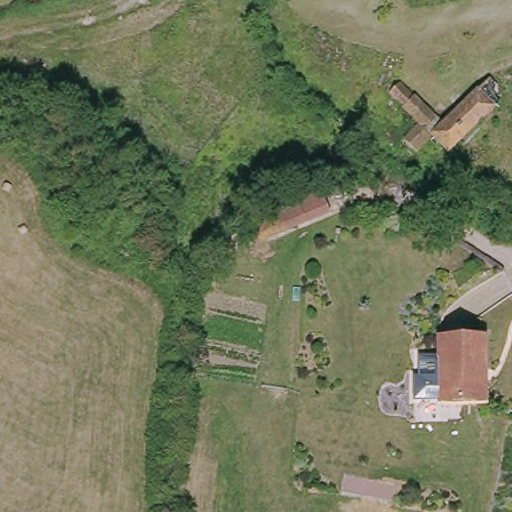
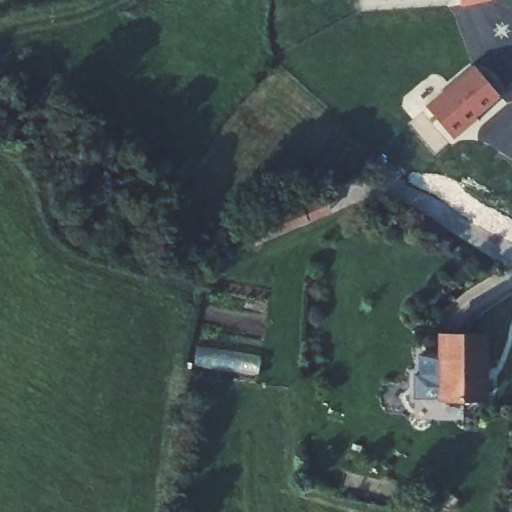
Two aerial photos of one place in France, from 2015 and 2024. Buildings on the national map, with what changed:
new [(460,9),(458,0),(491,0),(491,2),(460,9)]
new [(452,140),(425,107),(473,65),(501,99),(452,140)]
demolished [(411,100),(422,91),(447,119),(493,76),(512,94),(512,95),(455,147),(438,129),(422,143),(412,131),(426,117),(411,100)]
unchanged [(322,195),(337,191),(343,211),(322,218),(275,232),(268,211),(322,195)]
unchanged [(488,335),(487,390),(441,391),(443,335),(488,335)]

